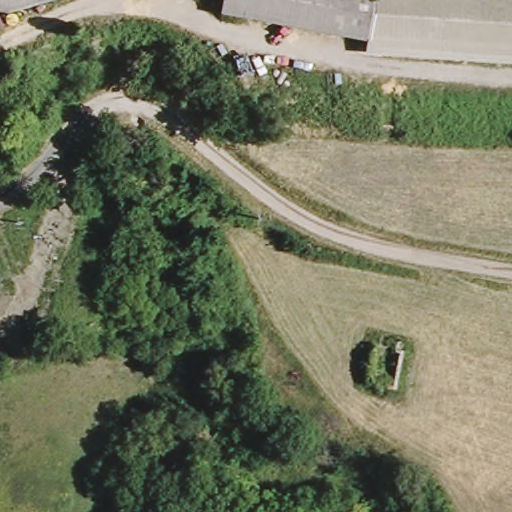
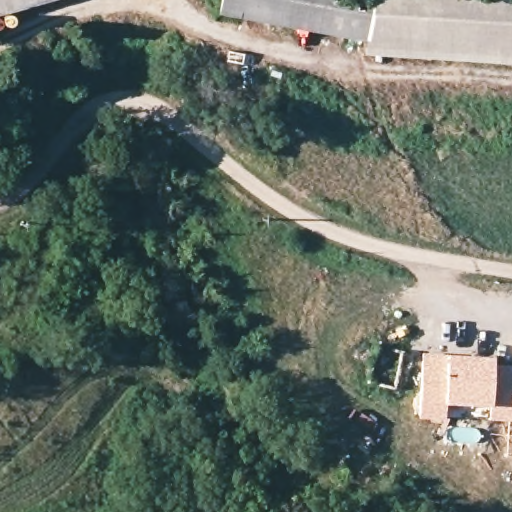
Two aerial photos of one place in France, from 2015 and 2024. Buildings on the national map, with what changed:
unchanged [(0,0),(46,0),(0,13),(0,0)]
unchanged [(367,56),(368,41),(218,17),(222,0),(512,0),(512,63),(367,56)]
new [(490,421),(489,406),(445,404),(446,419),(418,419),(422,353),(446,354),(494,357),(512,361),(512,421),(490,421)]

